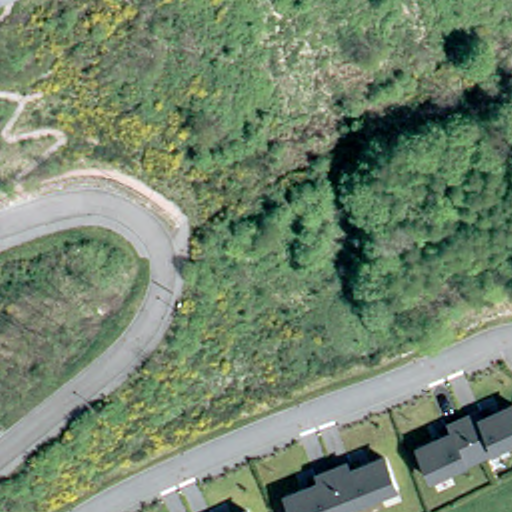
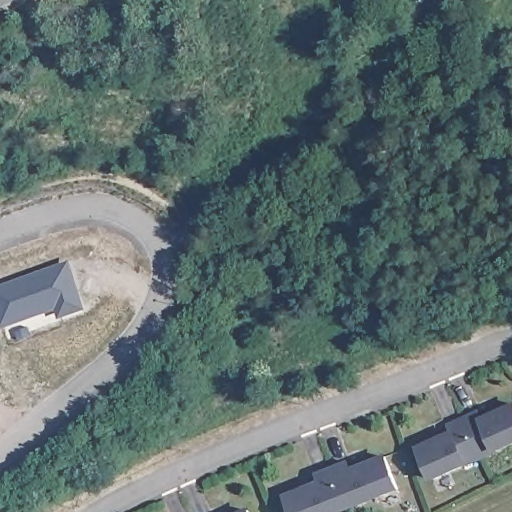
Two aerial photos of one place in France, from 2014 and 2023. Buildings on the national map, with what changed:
new [(69,260),(87,309),(60,320),(56,310),(2,330),(0,324),(0,286),(69,260)]
unchanged [(449,426),(478,412),(481,417),(512,405),(512,440),(495,446),(497,453),(470,466),(467,463),(432,479),(420,448),(452,433),(449,426)]
unchanged [(317,477),(350,463),(352,467),(386,456),(399,490),(343,512),(294,512),(287,496),(318,482),(317,477)]
unchanged [(250,512),(237,512),(247,507),(250,512)]

